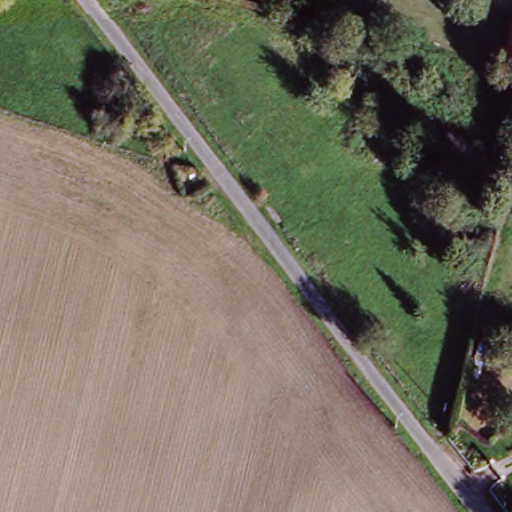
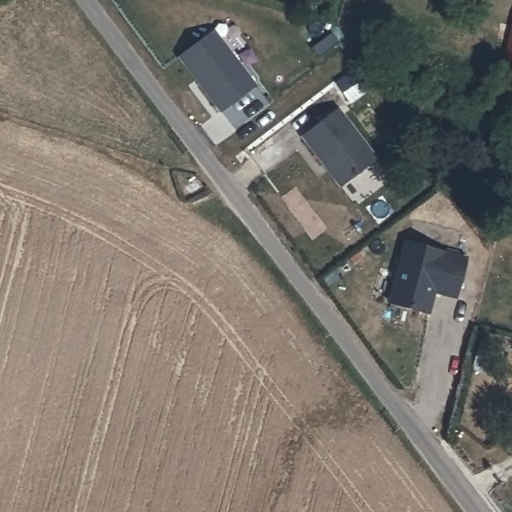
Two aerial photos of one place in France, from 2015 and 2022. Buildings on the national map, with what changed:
unchanged [(512,29),(512,56),(506,55),(512,29)]
new [(214,35),(255,89),(223,113),(183,56),(214,35)]
new [(335,115),(373,161),(340,187),(303,142),(335,115)]
new [(404,243),(471,258),(461,298),(438,293),(433,315),(388,306),(404,243)]

